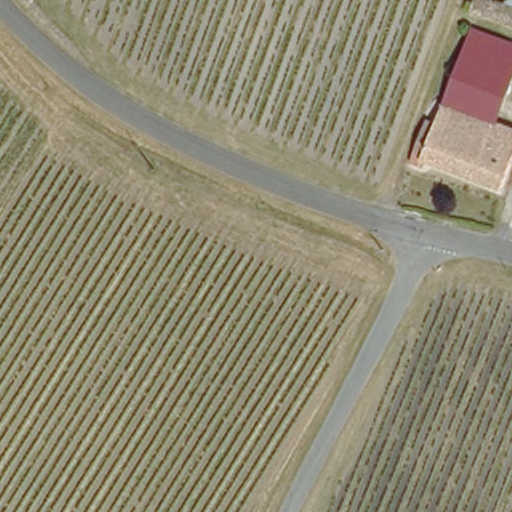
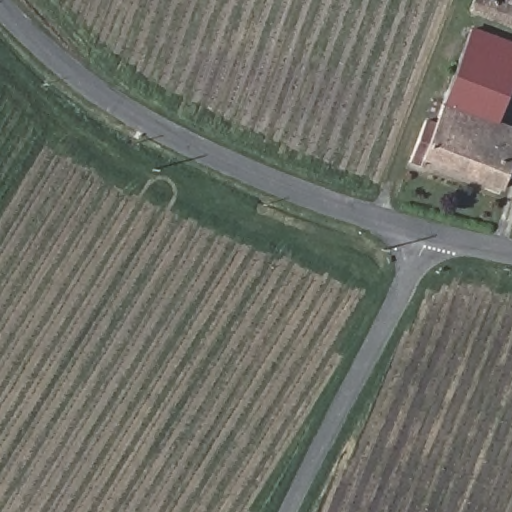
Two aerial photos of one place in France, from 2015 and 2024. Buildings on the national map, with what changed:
unchanged [(512,88),(499,119),(512,126),(512,169),(503,194),(424,161),(420,171),(408,167),(425,117),(435,123),(474,29),(512,44),(512,88)]

